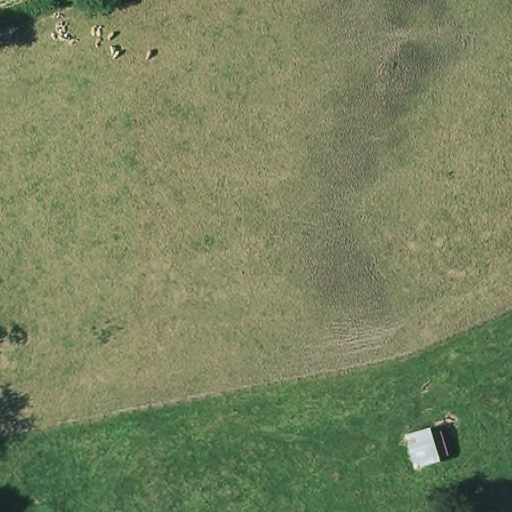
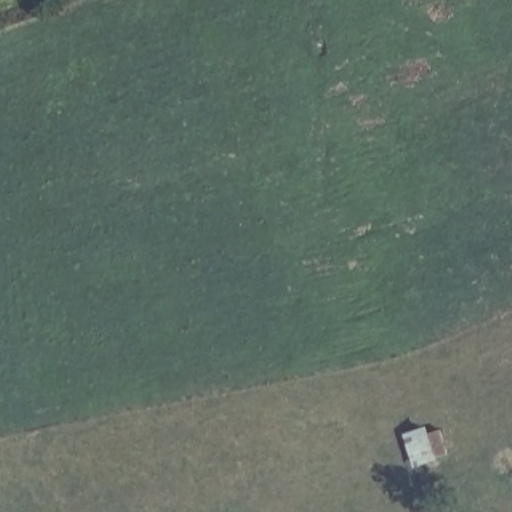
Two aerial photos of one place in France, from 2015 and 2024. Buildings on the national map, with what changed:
unchanged [(451,459),(429,465),(420,435),(442,429),(451,459)]

